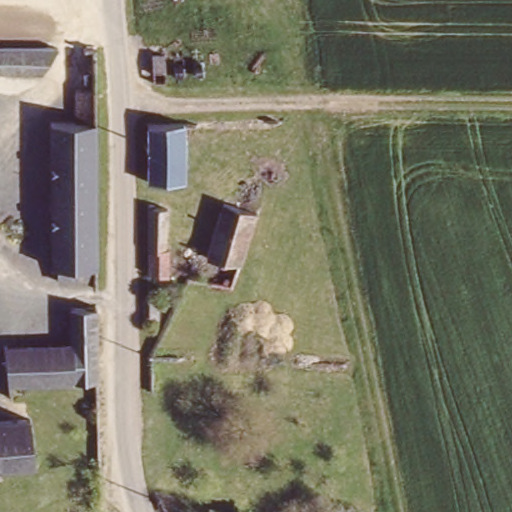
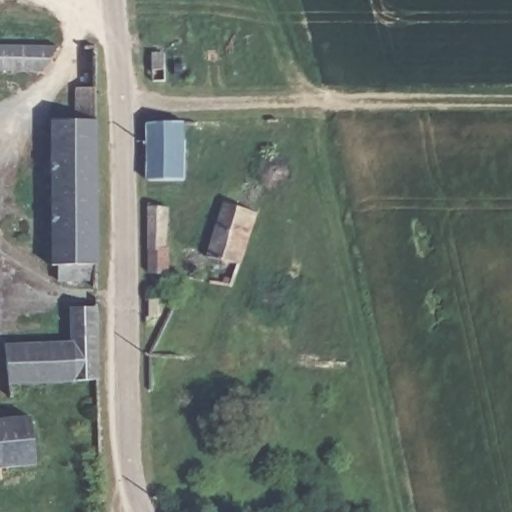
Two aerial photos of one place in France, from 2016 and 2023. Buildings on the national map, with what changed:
unchanged [(51,50),(41,75),(0,75),(0,50),(39,50),(51,50)]
unchanged [(72,120),(72,86),(92,87),(91,280),(55,280),(56,265),(49,265),(49,120),(72,120)]
unchanged [(186,122),(185,181),(149,181),(149,123),(186,122)]
unchanged [(225,202),(259,212),(241,266),(207,257),(225,202)]
unchanged [(165,206),(165,248),(171,248),(170,277),(150,273),(150,206),(165,206)]
unchanged [(68,343),(68,307),(92,307),(94,378),(67,380),(68,343)]
unchanged [(3,383),(3,345),(68,343),(67,380),(3,383)]
unchanged [(36,464),(0,468),(0,420),(31,416),(36,464)]

